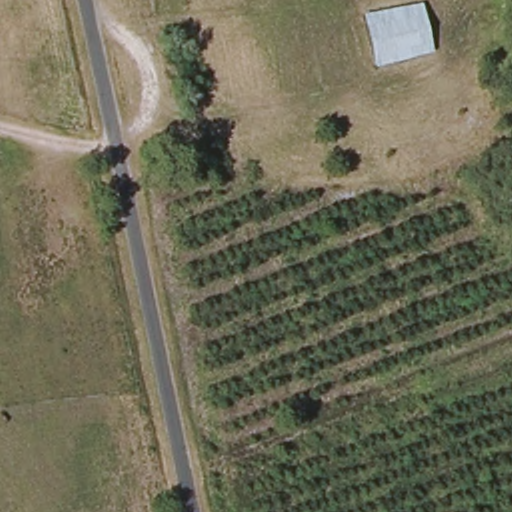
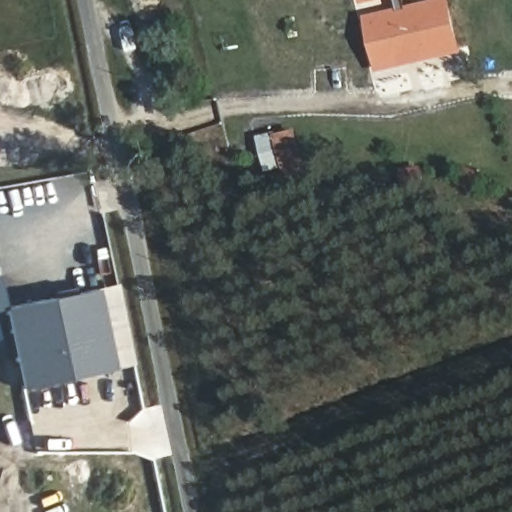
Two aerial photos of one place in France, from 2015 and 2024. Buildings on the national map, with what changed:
new [(388,0),(364,5),(363,0),(388,0)]
new [(453,0),(466,53),(377,74),(374,65),(433,51),(421,4),(440,0),(453,0)]
new [(374,65),(362,13),(421,1),(433,51),(374,65)]
demolished [(425,48),(369,55),(368,24),(422,15),(425,48)]
new [(297,129),(308,174),(285,180),(283,168),(265,172),(257,138),(274,135),(297,129)]
new [(4,307),(117,284),(134,365),(20,388),(4,307)]
new [(0,308),(0,290),(4,307),(0,308)]

